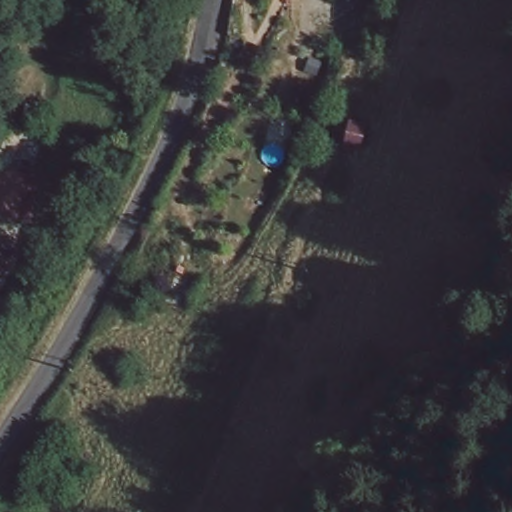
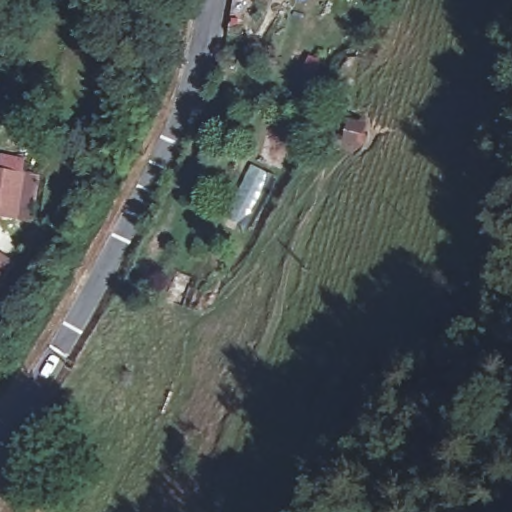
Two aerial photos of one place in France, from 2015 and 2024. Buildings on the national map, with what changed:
unchanged [(363,119),(357,147),(342,143),(344,116),(363,119)]
new [(39,174),(32,221),(0,217),(0,169),(39,174)]
unchanged [(7,260),(0,267),(0,254),(7,260)]

